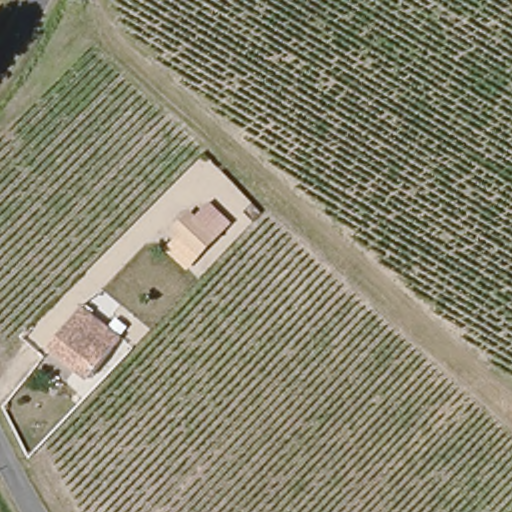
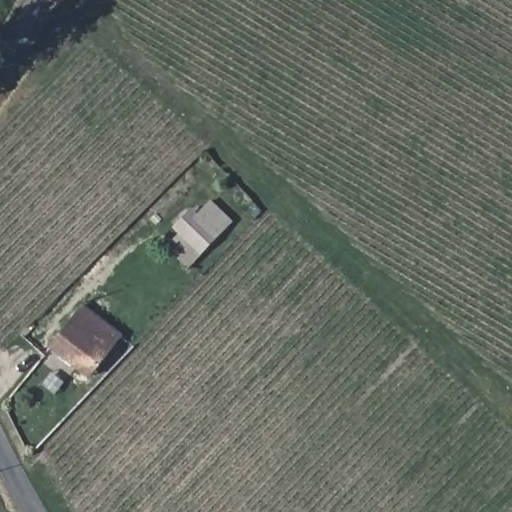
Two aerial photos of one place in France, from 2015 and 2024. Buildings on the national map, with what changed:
unchanged [(220,238),(206,252),(181,228),(195,214),(220,238)]
unchanged [(122,338),(89,375),(52,342),(86,305),(122,338)]

